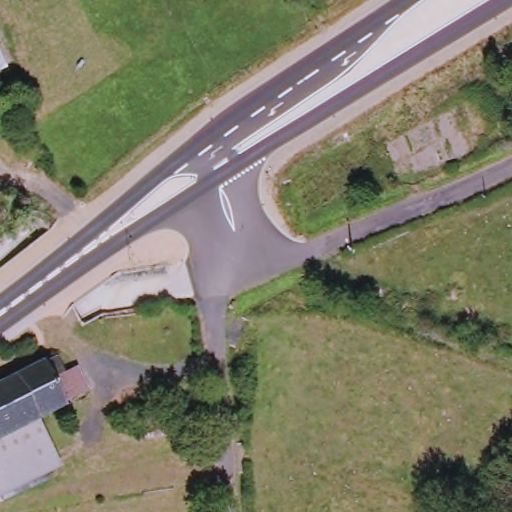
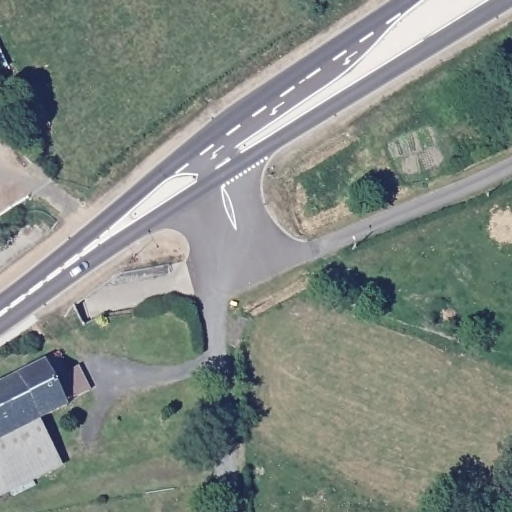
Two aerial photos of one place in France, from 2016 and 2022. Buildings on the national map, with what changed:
unchanged [(45,363),(46,366),(57,361),(65,375),(77,370),(87,388),(67,399),(69,404),(40,420),(66,465),(0,499),(0,387),(45,363)]

